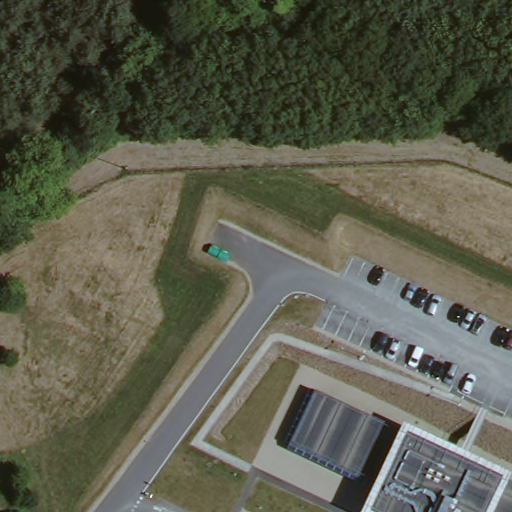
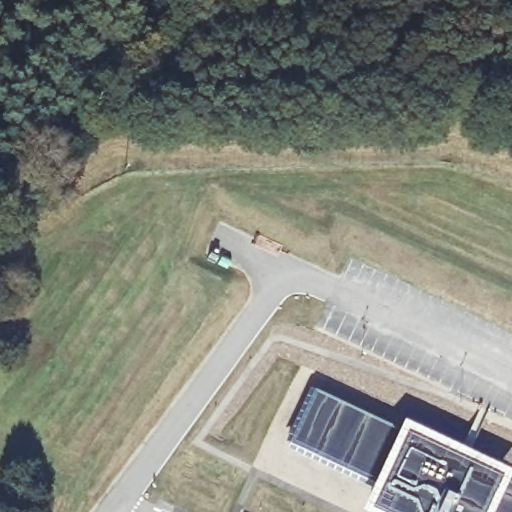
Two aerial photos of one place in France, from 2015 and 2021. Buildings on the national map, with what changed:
unchanged [(400,429),(402,425),(511,474),(508,481),(512,483),(512,512),(362,512),(376,482),(290,443),(315,391),(400,429)]

